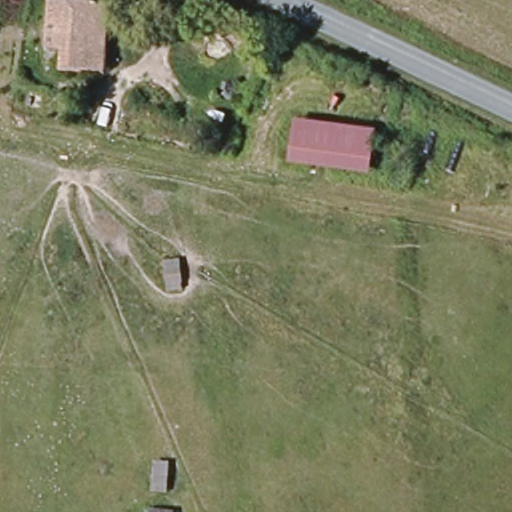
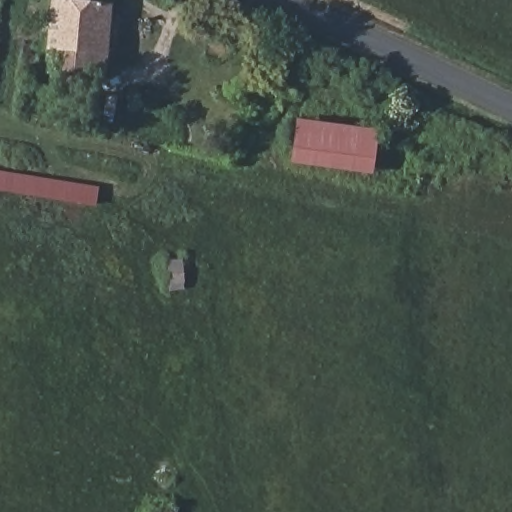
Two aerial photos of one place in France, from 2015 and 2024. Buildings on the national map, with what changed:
unchanged [(85,0),(114,1),(113,71),(90,71),(90,77),(48,75),(48,0),(85,0)]
unchanged [(371,167),(291,157),(297,115),(376,125),(371,167)]
new [(0,171),(100,187),(97,205),(0,191),(0,171)]

